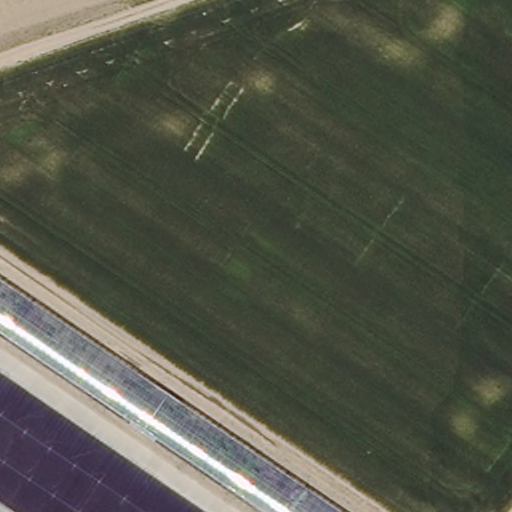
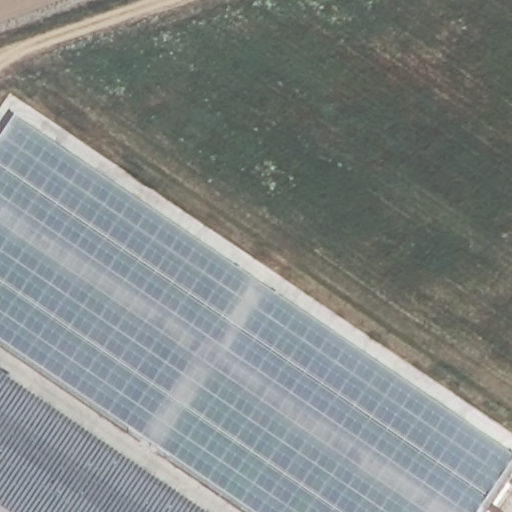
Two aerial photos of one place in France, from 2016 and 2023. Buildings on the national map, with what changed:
new [(0,342),(0,144),(16,120),(512,458),(512,468),(483,512),(251,512),(0,342)]

